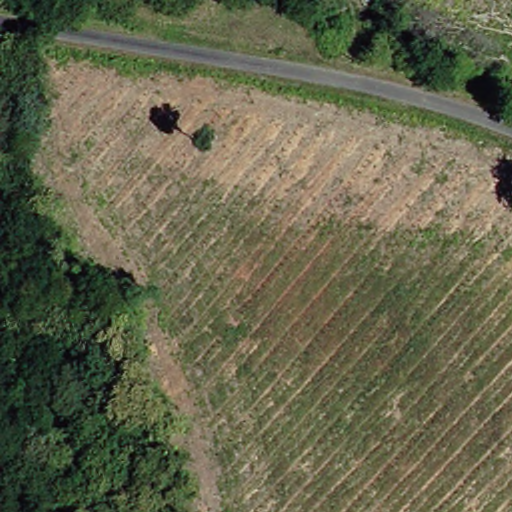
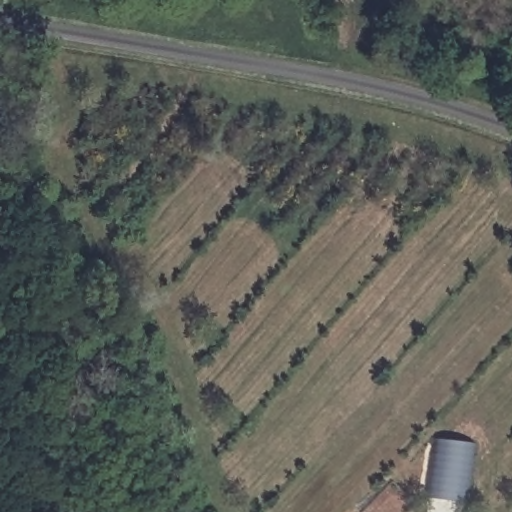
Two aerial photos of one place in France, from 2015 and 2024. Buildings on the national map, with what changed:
new [(434,436),(473,442),(467,500),(426,495),(434,436)]

